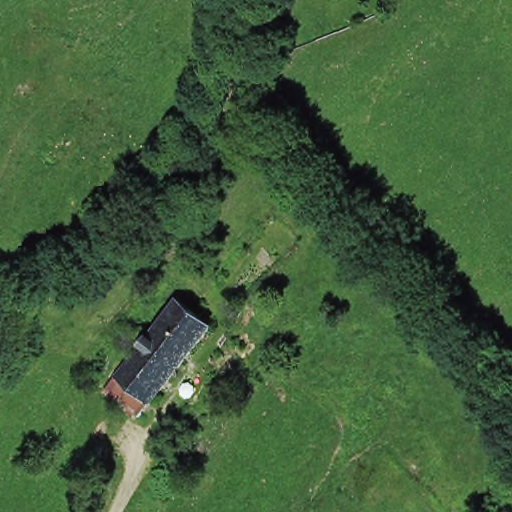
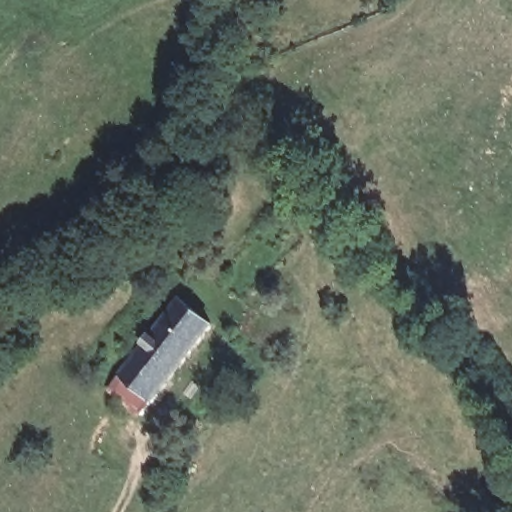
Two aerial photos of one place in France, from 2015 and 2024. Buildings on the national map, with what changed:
unchanged [(124,358),(184,285),(217,312),(157,385),(145,401),(112,373),(124,358)]

